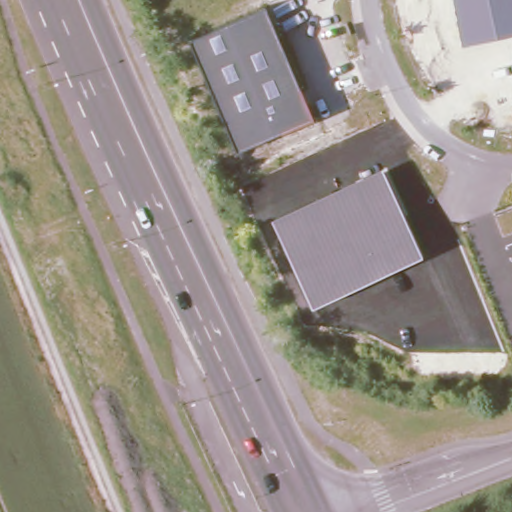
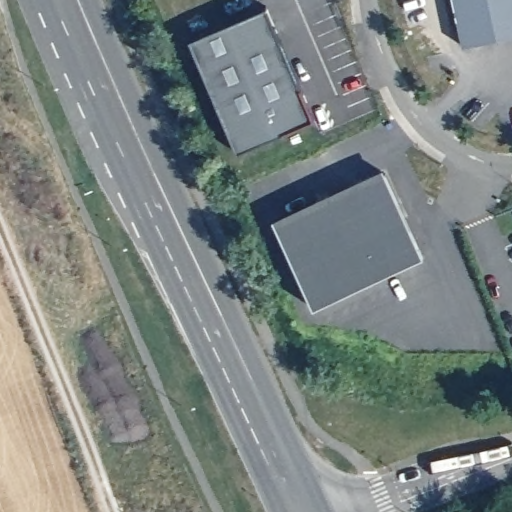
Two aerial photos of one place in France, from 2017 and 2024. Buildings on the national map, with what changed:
unchanged [(452,0),(512,0),(512,34),(461,45),(452,0)]
unchanged [(237,151),(189,37),(266,6),(314,117),(237,151)]
unchanged [(422,254),(312,305),(272,219),(380,168),(422,254)]

